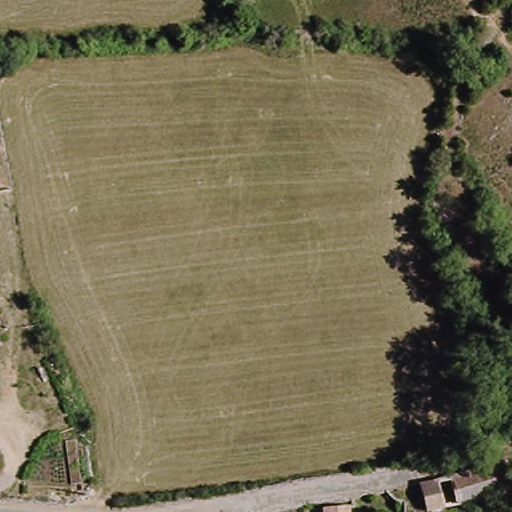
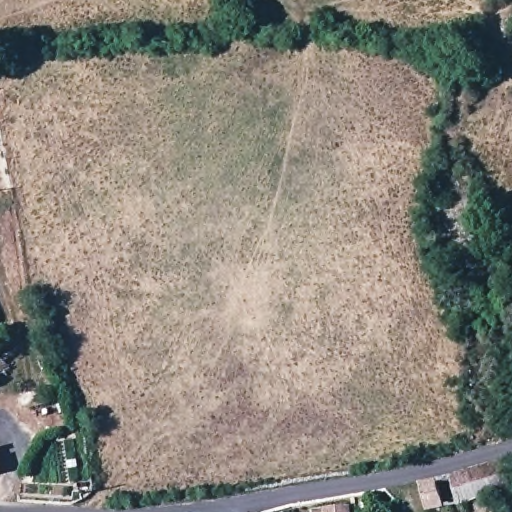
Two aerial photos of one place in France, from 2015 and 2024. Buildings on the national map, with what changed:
unchanged [(506,489),(461,502),(448,505),(443,477),(496,461),(506,489)]
unchanged [(435,507),(418,510),(413,484),(430,480),(435,507)]
unchanged [(344,505),(345,512),(318,512),(317,508),(344,505)]

